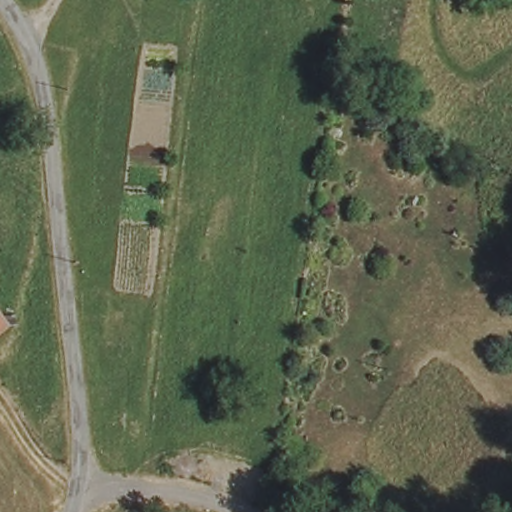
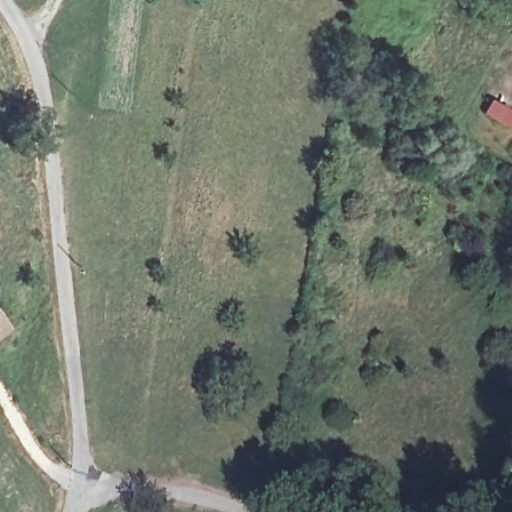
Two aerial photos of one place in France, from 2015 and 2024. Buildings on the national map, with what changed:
unchanged [(7,324),(0,330),(0,316),(7,324)]

